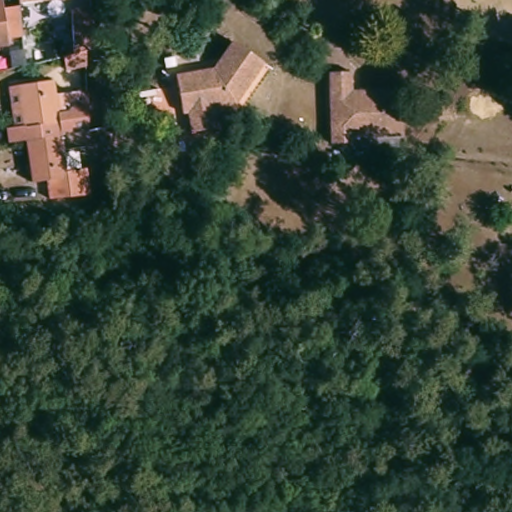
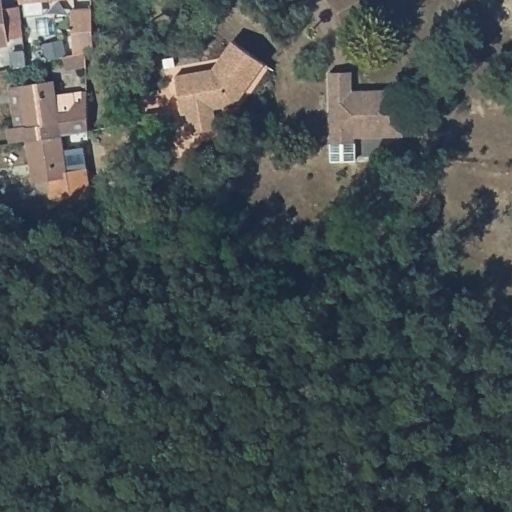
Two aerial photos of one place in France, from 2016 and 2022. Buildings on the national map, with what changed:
unchanged [(42,0),(21,1),(21,0),(42,0)]
unchanged [(19,35),(1,37),(1,41),(0,42),(0,9),(15,6),(19,35)]
unchanged [(66,70),(66,56),(73,55),(71,10),(92,10),(93,50),(86,51),(86,70),(66,70)]
unchanged [(210,72),(231,44),(262,66),(233,106),(211,111),(215,130),(189,137),(184,118),(177,120),(168,82),(210,72)]
unchanged [(25,50),(27,65),(14,69),(11,51),(25,50)]
unchanged [(346,75),(349,94),(399,86),(406,129),(356,136),(357,143),(334,146),(323,79),(346,75)]
unchanged [(0,130),(6,130),(2,87),(12,86),(46,83),(48,97),(79,95),(79,100),(79,105),(80,135),(54,138),(20,142),(2,145),(0,130)]
unchanged [(54,138),(58,174),(79,171),(82,196),(72,197),(42,200),(40,182),(25,185),(20,142),(54,138)]

